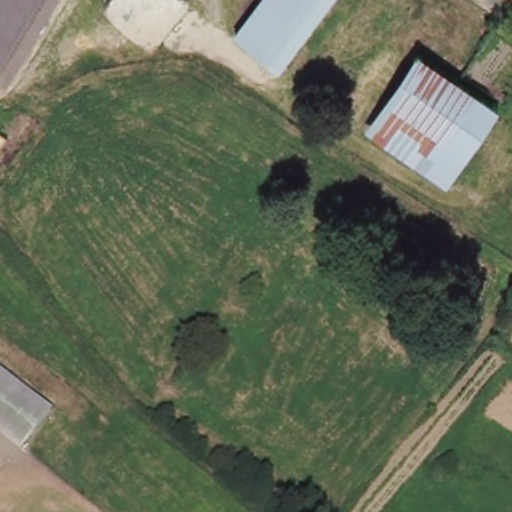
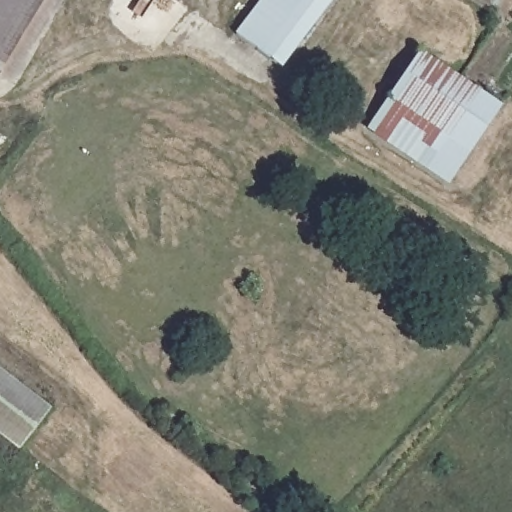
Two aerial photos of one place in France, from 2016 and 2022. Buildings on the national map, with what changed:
unchanged [(62,0),(12,82),(0,74),(0,0),(62,0)]
unchanged [(337,0),(282,69),(236,33),(262,0),(337,0)]
unchanged [(421,50),(503,105),(451,183),(368,130),(421,50)]
unchanged [(50,411),(17,456),(0,442),(0,372),(50,411)]

